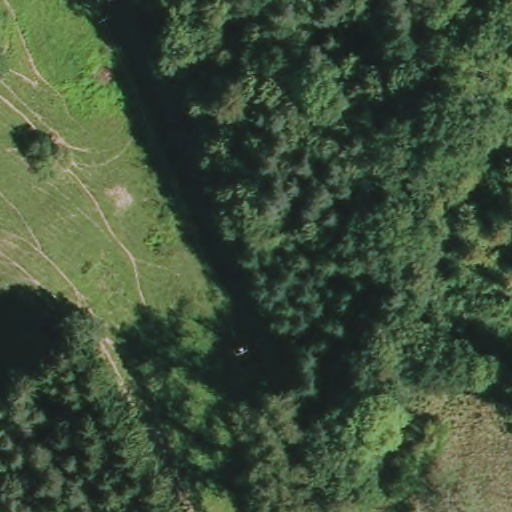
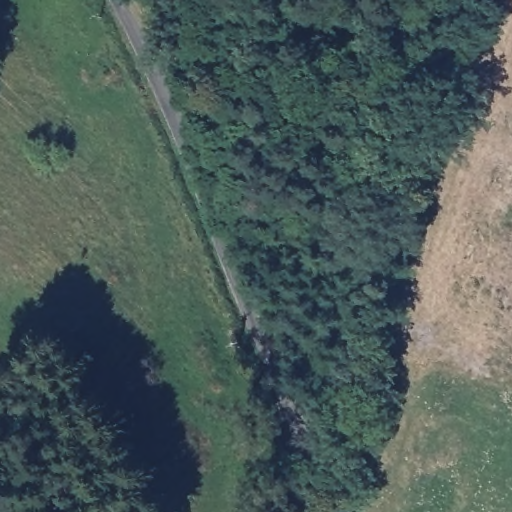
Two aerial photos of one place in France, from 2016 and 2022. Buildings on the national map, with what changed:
[]

